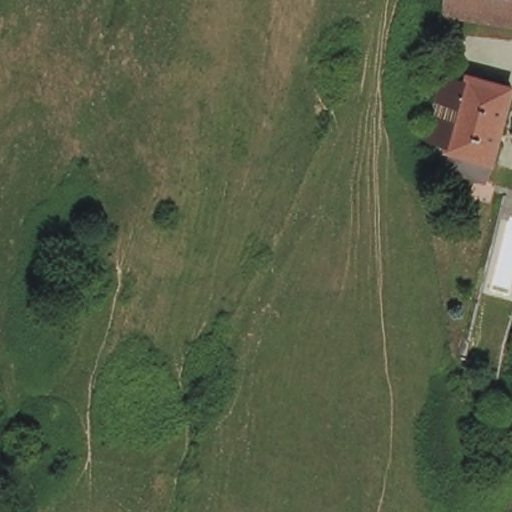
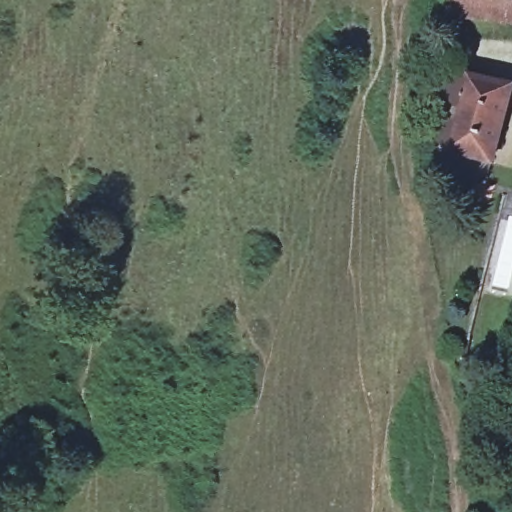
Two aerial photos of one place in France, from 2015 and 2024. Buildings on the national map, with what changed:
unchanged [(446,0),(512,0),(512,15),(446,9),(446,0)]
unchanged [(448,142),(430,139),(442,60),(466,66),(454,143),(448,142)]
unchanged [(467,164),(469,146),(454,143),(466,66),(509,72),(499,150),(494,150),(492,168),(467,164)]

